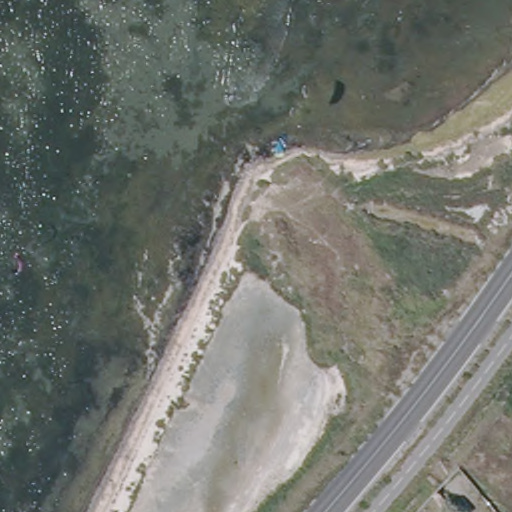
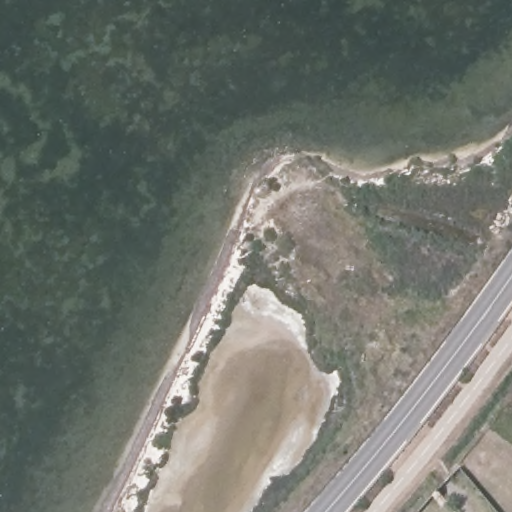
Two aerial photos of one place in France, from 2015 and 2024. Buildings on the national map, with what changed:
[]

